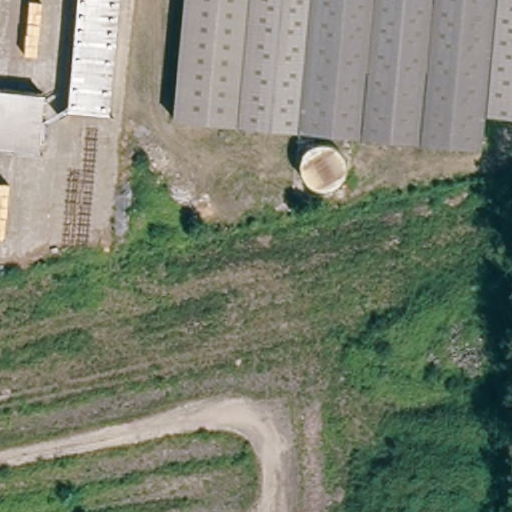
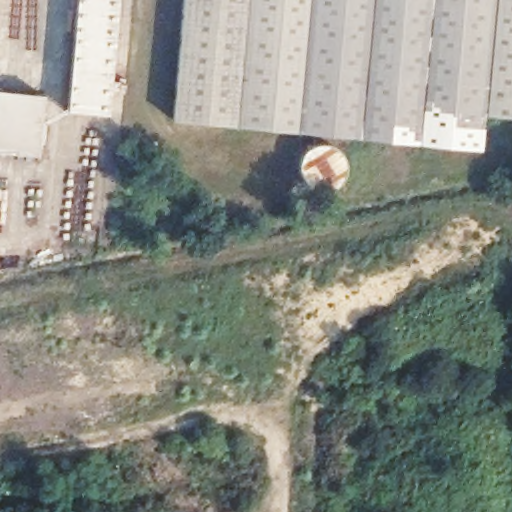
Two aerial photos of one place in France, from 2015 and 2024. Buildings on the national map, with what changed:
unchanged [(59,115),(69,0),(119,0),(110,119),(59,115)]
unchanged [(483,103),(480,138),(179,111),(188,0),(512,0),(512,105),(500,104),(483,103)]
unchanged [(36,154),(0,151),(0,101),(40,104),(36,154)]
unchanged [(298,169),(301,161),(306,156),(313,152),(325,152),(332,156),(337,162),(339,166),(340,174),(338,182),(332,190),(325,193),(314,193),(309,191),(304,187),(299,181),(298,173),(298,169)]

